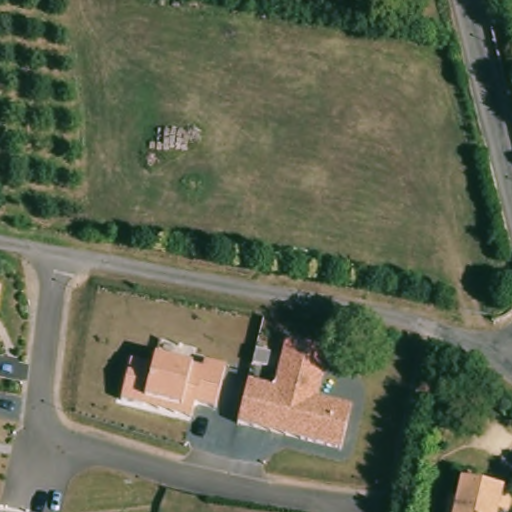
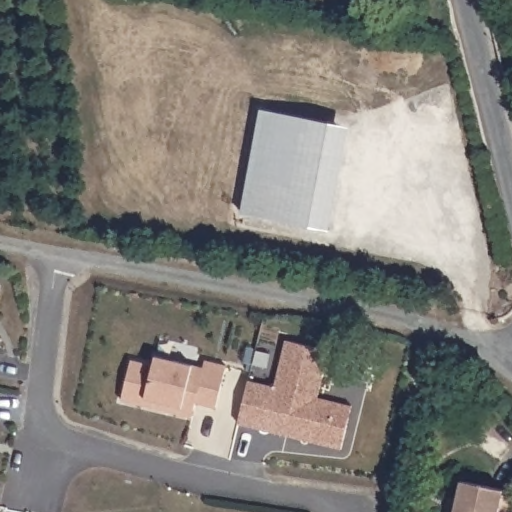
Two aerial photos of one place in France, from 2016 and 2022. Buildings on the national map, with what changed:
new [(260,109),(351,126),(331,231),(241,212),(260,109)]
unchanged [(249,378),(277,385),(287,340),(329,350),(319,396),(354,404),(343,449),(239,423),(249,378)]
unchanged [(133,358),(154,362),(156,356),(194,364),(205,368),(205,358),(228,362),(218,408),(194,402),(192,415),(124,398),(133,358)]
unchanged [(502,492),(497,512),(443,512),(446,498),(454,500),(459,482),(502,492)]

